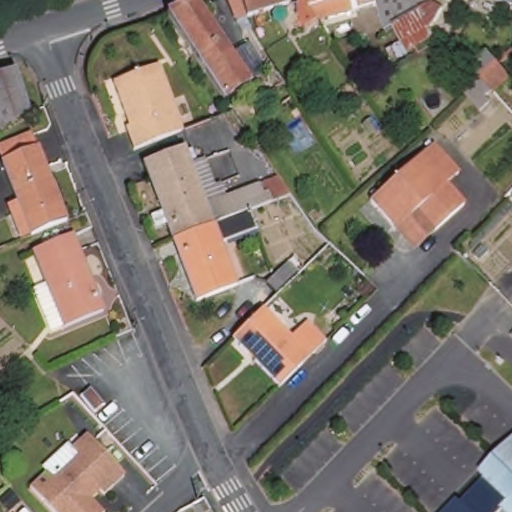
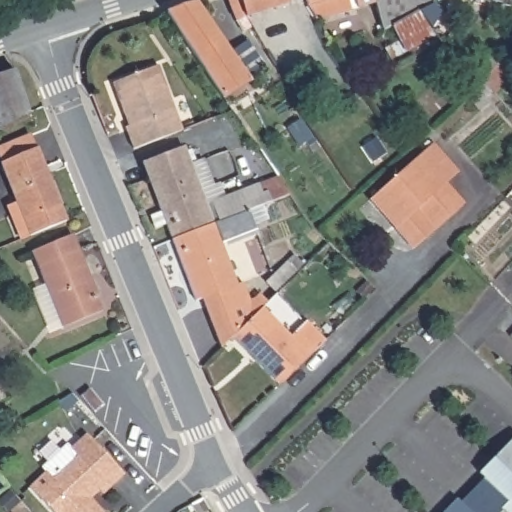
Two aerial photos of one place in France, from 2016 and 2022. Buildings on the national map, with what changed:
unchanged [(290,5),(247,18),(251,28),(243,32),(235,20),(227,0),(288,0),(290,5)]
unchanged [(293,25),(299,20),(296,15),(295,2),(299,0),(356,0),(358,9),(318,25),(317,22),(305,30),(303,28),(298,32),(293,25)]
unchanged [(393,61),(386,49),(401,40),(394,27),(384,30),(374,0),(471,0),(442,46),(437,37),(435,34),(407,50),(408,53),(393,61)]
unchanged [(486,0),(512,0),(512,8),(486,0)]
unchanged [(196,5),(249,80),(224,98),(166,15),(196,5)]
unchanged [(510,19),(512,13),(512,20),(510,19)]
unchanged [(479,85),(473,77),(476,75),(471,69),(487,55),(499,66),(511,80),(494,96),(480,84),(479,85)]
unchanged [(128,129),(130,128),(114,82),(160,65),(184,131),(135,150),(128,129)]
unchanged [(29,114),(0,134),(0,76),(14,70),(29,114)]
unchanged [(1,166),(0,164),(0,146),(31,135),(36,152),(64,225),(31,239),(21,242),(10,212),(19,210),(1,166)]
unchanged [(372,201),(434,146),(460,174),(448,185),(466,206),(437,232),(415,250),(398,230),(372,201)]
unchanged [(220,205),(279,182),(289,197),(276,201),(249,212),(225,221),(173,240),(166,225),(155,229),(150,216),(161,212),(144,165),(184,149),(187,155),(192,152),(196,164),(191,166),(192,169),(199,166),(209,194),(215,191),(220,205)]
unchanged [(225,221),(249,212),(255,230),(221,243),(237,285),(196,300),(173,240),(225,221)]
unchanged [(70,240),(100,314),(62,330),(32,255),(70,240)]
unchanged [(289,260),(297,270),(274,291),(266,282),(289,260)]
unchanged [(291,340),(295,336),(309,323),(327,340),(312,355),(278,389),(232,341),(263,310),(291,340)]
unchanged [(91,388),(103,402),(95,408),(83,395),(91,388)]
unchanged [(11,405),(0,409),(0,395),(8,392),(11,405)]
unchanged [(47,512),(26,491),(34,485),(45,475),(43,472),(66,451),(68,452),(85,438),(90,443),(100,435),(124,465),(115,472),(121,480),(101,498),(99,495),(89,503),(97,512),(47,512)]
unchanged [(489,482),(484,476),(512,447),(512,488),(488,512),(471,512),(465,506),(489,482)]
unchanged [(488,512),(512,488),(512,512),(488,512)]
unchanged [(465,506),(471,512),(451,512),(461,502),(465,506)]

